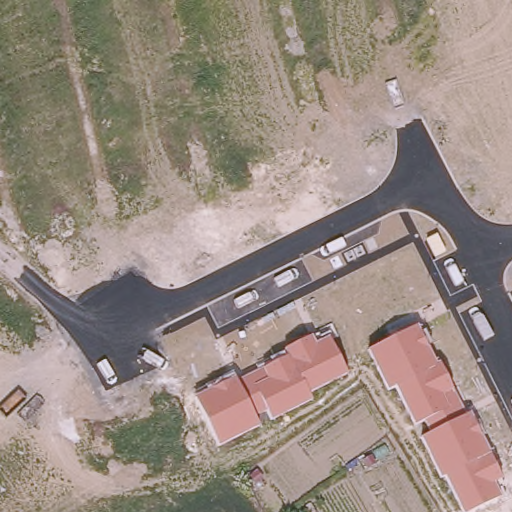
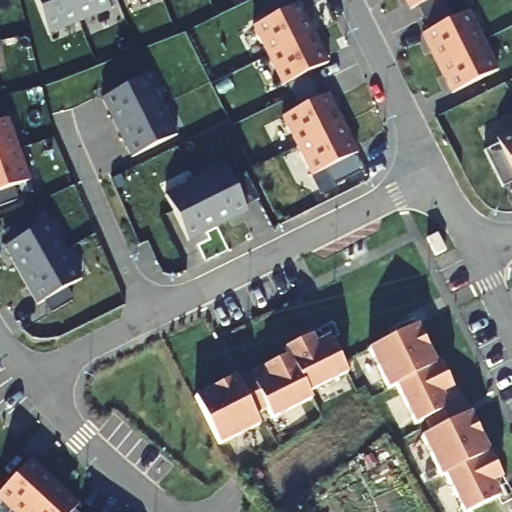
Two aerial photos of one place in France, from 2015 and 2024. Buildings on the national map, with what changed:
new [(79,18),(49,29),(37,0),(72,0),(79,18)]
new [(110,6),(79,18),(72,0),(108,0),(110,6)]
new [(266,7),(280,0),(290,0),(295,8),(272,19),(266,7)]
new [(412,11),(406,0),(436,0),(412,11)]
new [(420,7),(436,0),(445,0),(449,9),(455,21),(433,32),(427,20),(420,7)]
new [(269,58),(255,28),(300,6),(315,36),(269,58)]
new [(439,66),(425,36),(465,16),(480,46),(439,66)]
new [(284,88),(269,58),(315,36),(329,65),(284,88)]
new [(454,96),(439,66),(480,46),(495,75),(454,96)]
new [(290,85),(312,74),(318,86),(325,99),(302,110),(296,97),(290,85)]
new [(145,79),(160,109),(118,129),(104,100),(145,79)]
new [(298,148),(284,119),(329,96),(344,126),(298,148)]
new [(160,109),(174,139),(133,159),(118,130),(160,109)]
new [(3,120),(15,152),(0,157),(0,122),(3,120)]
new [(313,178),(298,148),(344,126),(358,156),(313,178)]
new [(512,131),(512,168),(497,138),(512,131)]
new [(512,181),(502,185),(485,150),(500,143),(512,168),(512,181)]
new [(25,182),(0,192),(0,157),(15,152),(25,182)]
new [(249,211),(219,226),(199,185),(228,170),(249,211)]
new [(248,179),(259,202),(247,208),(235,185),(248,179)]
new [(219,226),(189,241),(169,199),(199,184),(219,226)]
new [(45,224),(61,253),(21,276),(5,247),(45,224)]
new [(21,276),(61,253),(77,282),(37,305),(21,276)]
unchanged [(426,331),(432,345),(429,347),(437,362),(440,360),(469,416),(472,414),(492,456),(490,458),(503,480),(496,484),(504,497),(472,512),(463,512),(445,476),(439,480),(420,438),(430,433),(423,420),(414,425),(396,387),(387,393),(369,350),(417,327),(420,334),(426,331)]
unchanged [(347,373),(309,393),(312,399),(270,420),(267,414),(254,420),(259,427),(219,445),(195,397),(207,389),(205,386),(234,372),(238,381),(287,356),(284,349),(310,335),(315,342),(329,335),(347,373)]
new [(27,512),(20,512),(0,494),(0,492),(30,459),(55,482),(27,512)]
new [(27,512),(55,482),(79,504),(72,512),(27,512)]

